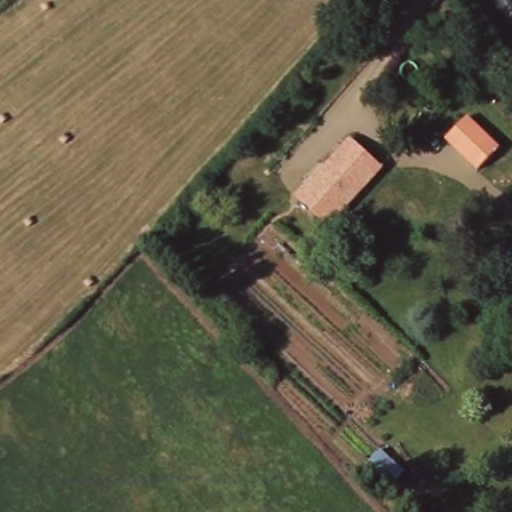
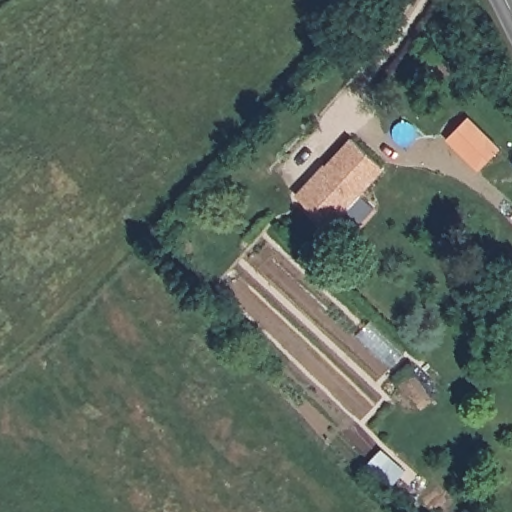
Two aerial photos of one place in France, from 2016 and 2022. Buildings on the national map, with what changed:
unchanged [(467,119),(500,150),(481,170),(447,139),(467,119)]
unchanged [(324,165),(351,135),(383,164),(330,224),(298,195),(307,184),(311,187),(327,168),(324,165)]
unchanged [(389,461),(373,476),(364,467),(380,452),(389,461)]

